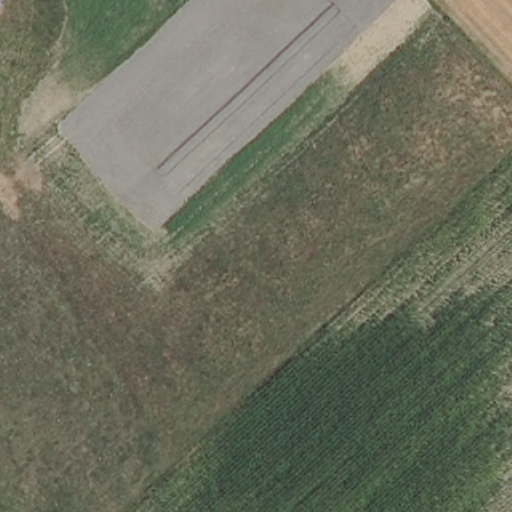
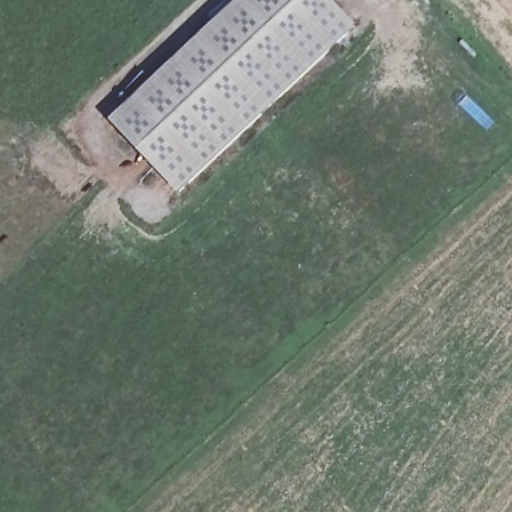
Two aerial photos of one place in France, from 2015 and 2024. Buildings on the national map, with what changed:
new [(239,0),(331,0),(357,26),(179,194),(110,122),(239,0)]

